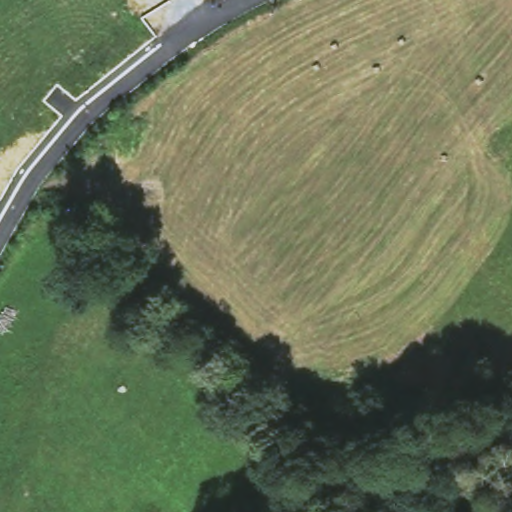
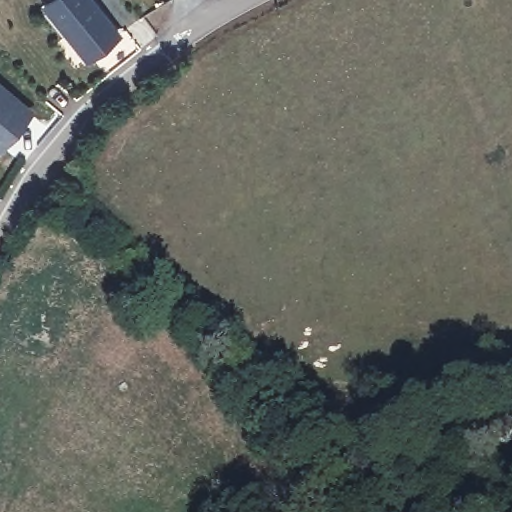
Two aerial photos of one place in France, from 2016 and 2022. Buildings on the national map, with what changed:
new [(123,40),(91,65),(48,9),(53,5),(50,0),(93,0),(123,40)]
new [(14,104),(0,120),(0,92),(14,104)]
new [(14,104),(28,115),(0,148),(0,120),(14,104)]

